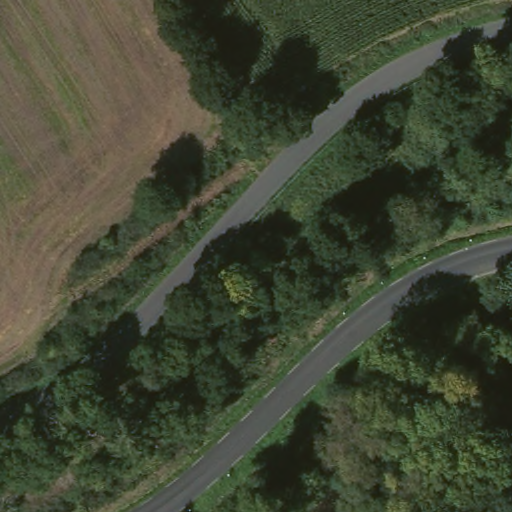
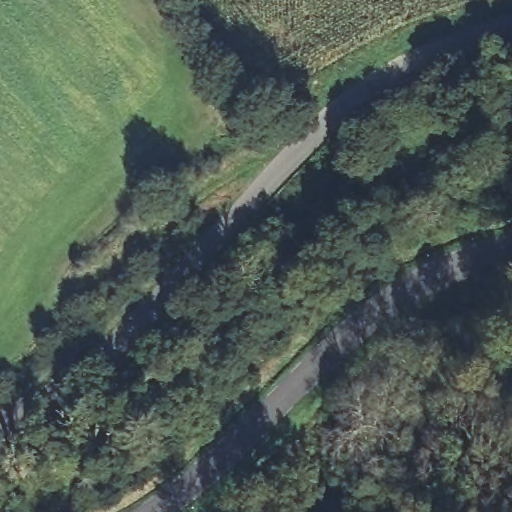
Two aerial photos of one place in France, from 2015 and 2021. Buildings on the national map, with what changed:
[]

